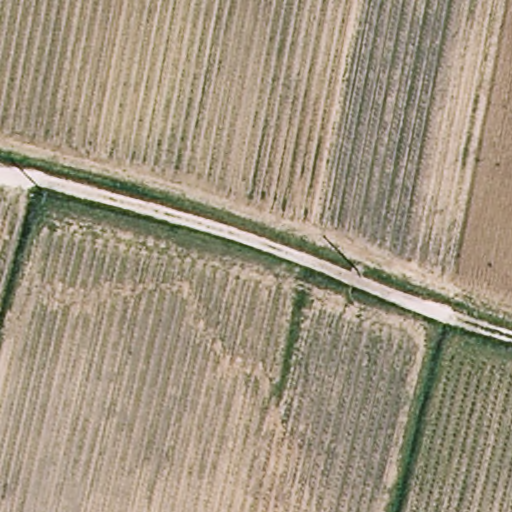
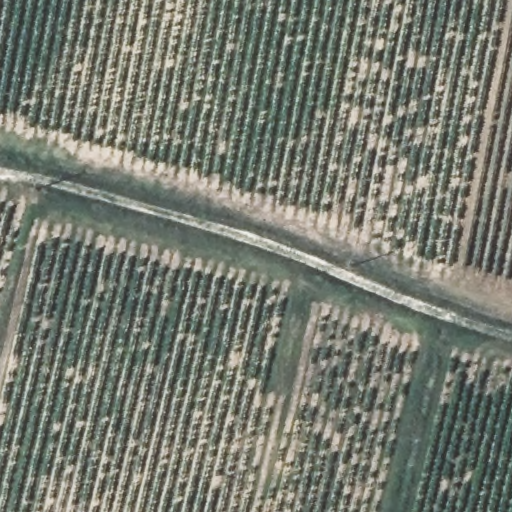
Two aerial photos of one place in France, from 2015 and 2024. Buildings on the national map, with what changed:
[]

